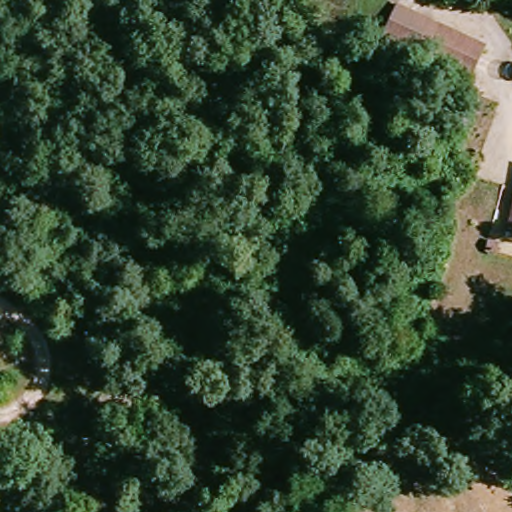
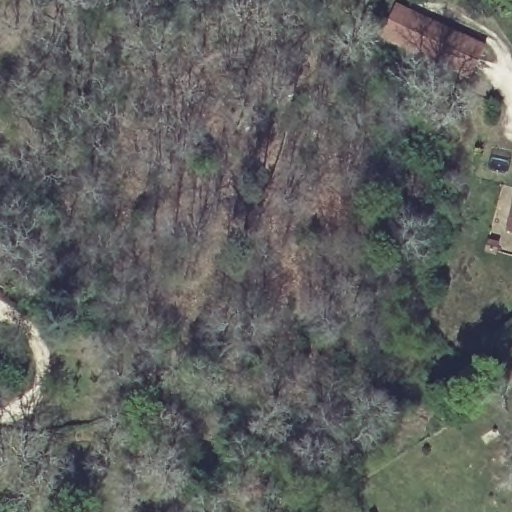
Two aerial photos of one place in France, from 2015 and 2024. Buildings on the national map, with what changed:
unchanged [(494,54),(476,84),(404,43),(382,31),(400,2),(417,11),(494,54)]
unchanged [(509,229),(512,221),(512,230),(509,229)]
unchanged [(494,242),(491,251),(483,246),(486,238),(494,242)]

